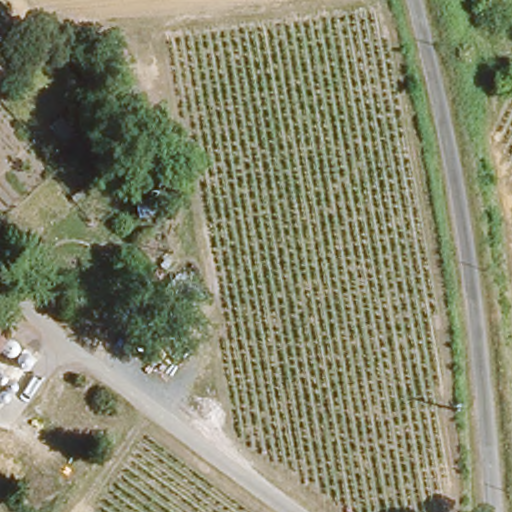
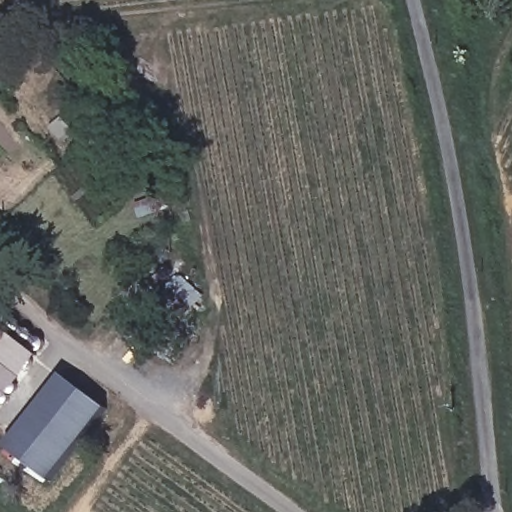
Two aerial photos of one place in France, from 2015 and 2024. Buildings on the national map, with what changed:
unchanged [(0,337),(0,318),(9,325),(0,337)]
new [(0,411),(0,337),(5,330),(40,355),(0,411)]
new [(51,482),(6,447),(61,374),(107,409),(51,482)]

